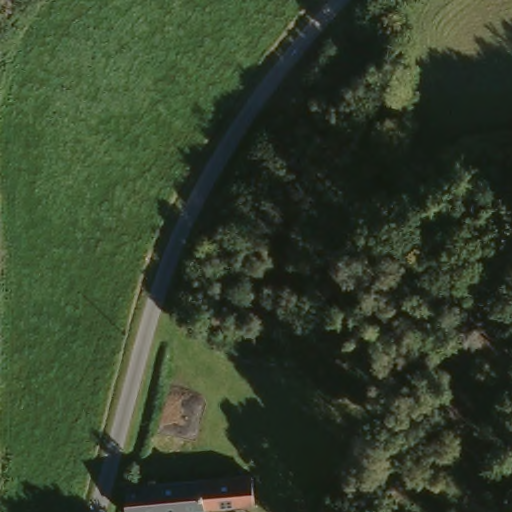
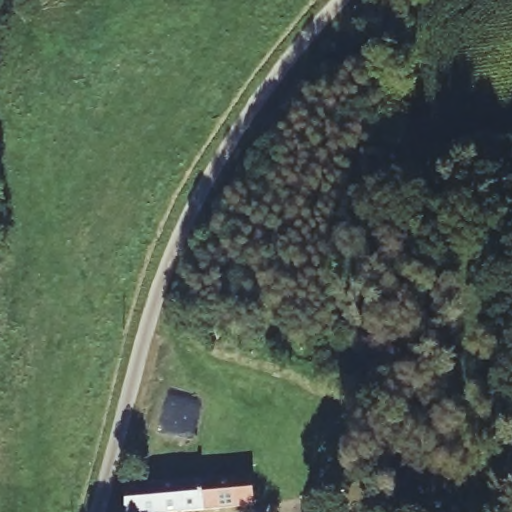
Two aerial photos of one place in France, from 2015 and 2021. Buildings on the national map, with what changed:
unchanged [(258,499),(129,508),(129,477),(133,476),(255,470),(258,499)]

